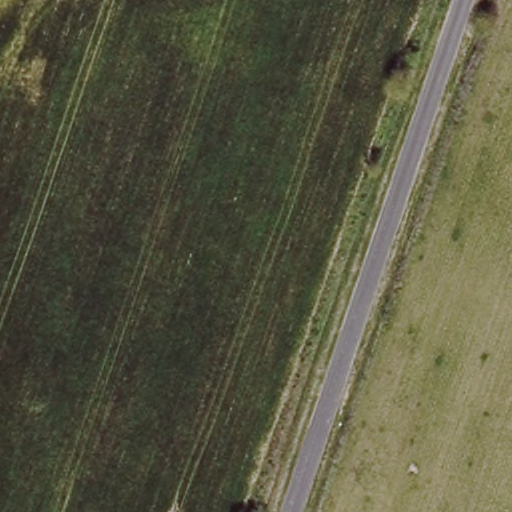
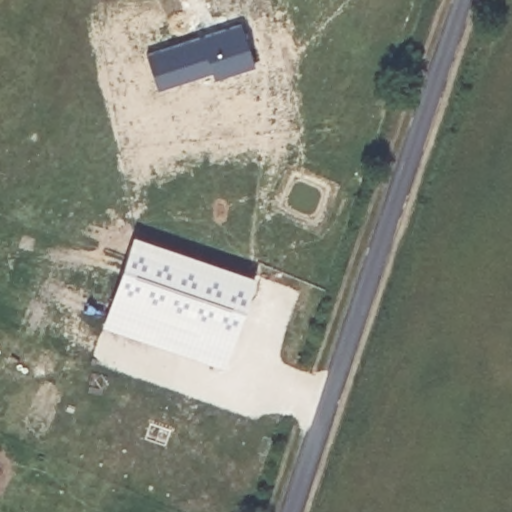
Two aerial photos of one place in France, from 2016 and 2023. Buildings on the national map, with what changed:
new [(133,236),(252,277),(221,367),(102,326),(133,236)]

